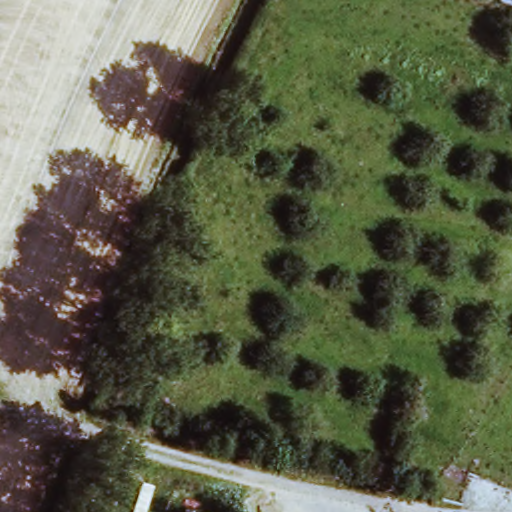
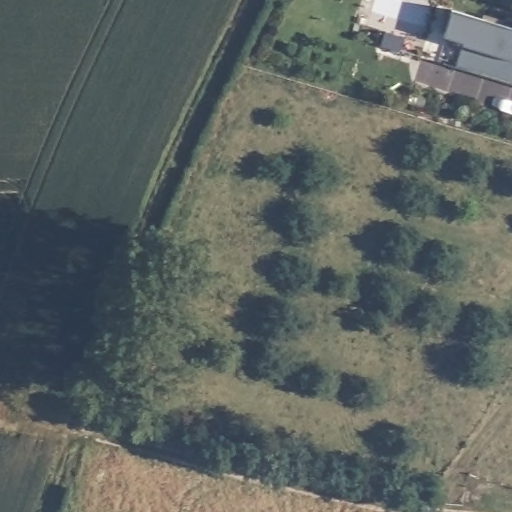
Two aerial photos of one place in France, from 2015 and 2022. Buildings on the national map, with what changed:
unchanged [(512,0),(512,1),(507,0),(512,0)]
new [(512,49),(512,50),(512,86),(450,67),(459,42),(439,37),(448,8),(449,9),(512,28),(512,49)]

